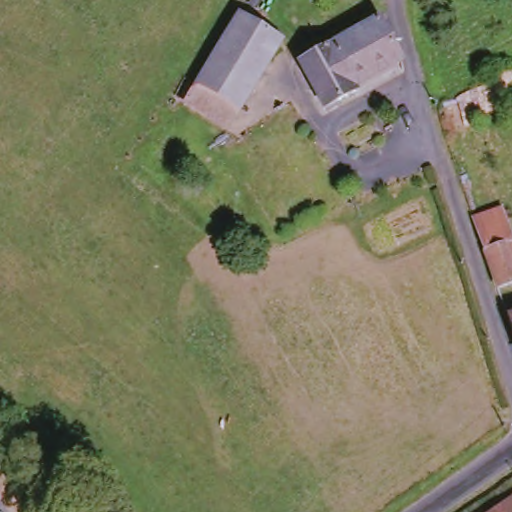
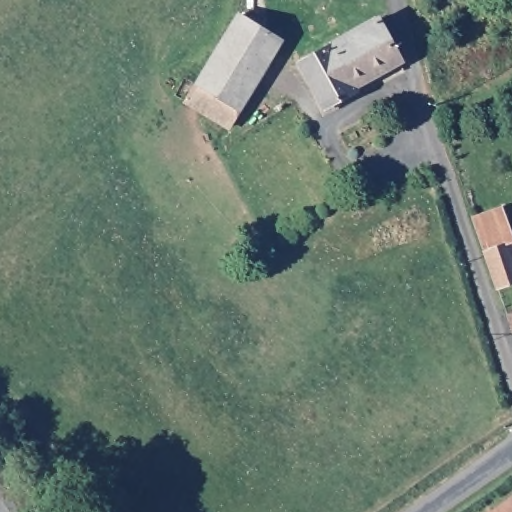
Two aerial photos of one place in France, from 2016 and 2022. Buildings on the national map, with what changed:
unchanged [(281,41),(228,126),(190,102),(240,15),(281,41)]
unchanged [(396,57),(348,85),(350,89),(320,102),(296,60),(373,16),(396,57)]
unchanged [(512,238),(512,280),(495,285),(470,217),(503,207),(512,238)]
unchanged [(505,316),(512,313),(512,339),(505,316)]
unchanged [(512,494),(512,512),(482,512),(510,492),(512,494)]

